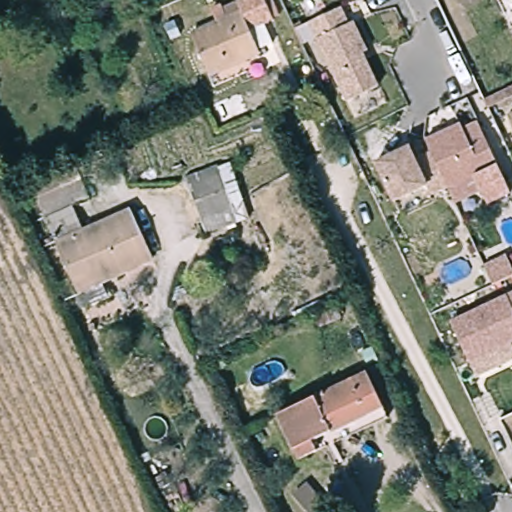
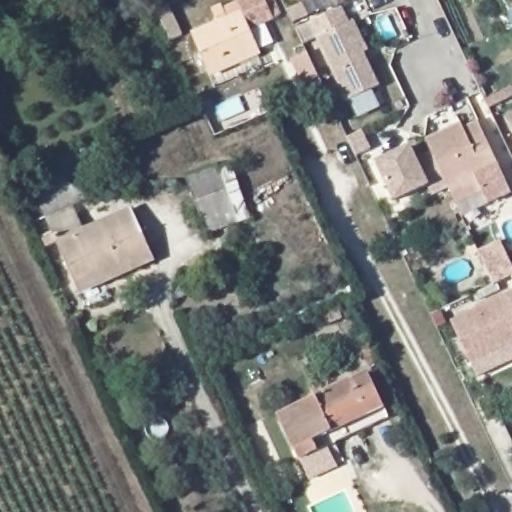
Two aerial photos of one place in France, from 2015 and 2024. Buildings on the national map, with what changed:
unchanged [(245,52),(230,22),(240,17),(233,6),(245,0),(262,0),(273,19),(249,33),(261,59),(250,64),(245,52)]
unchanged [(346,98),(310,20),(346,3),(368,50),(365,53),(378,82),(346,98)]
unchanged [(212,82),(190,41),(230,22),(245,52),(250,64),(212,82)]
unchanged [(512,113),(512,136),(503,117),(512,113)]
unchanged [(432,197),(426,185),(393,202),(375,161),(411,144),(417,157),(432,150),(427,136),(461,121),(464,126),(477,121),(499,165),(432,197)]
unchanged [(233,203),(247,198),(254,220),(205,238),(184,184),(220,171),(233,203)]
unchanged [(131,214),(157,268),(108,290),(103,280),(80,291),(50,228),(75,217),(87,235),(131,214)]
unchanged [(512,278),(503,282),(494,263),(512,255),(512,278)]
unchanged [(450,320),(512,291),(512,342),(468,362),(450,320)]
unchanged [(330,394),(368,376),(387,410),(346,429),(331,437),(294,453),(277,420),(315,401),(330,394)]

